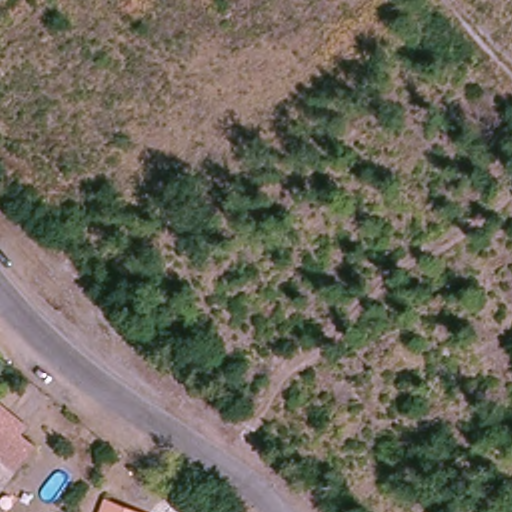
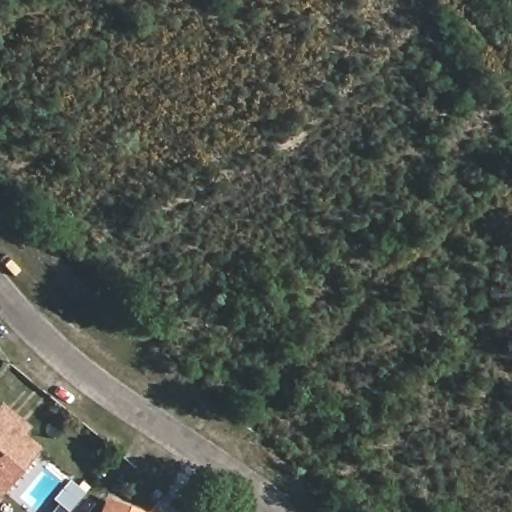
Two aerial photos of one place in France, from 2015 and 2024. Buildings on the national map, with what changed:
unchanged [(27,429),(21,437),(36,449),(0,490),(0,419),(6,412),(27,429)]
unchanged [(107,503),(130,512),(104,512),(107,503)]

